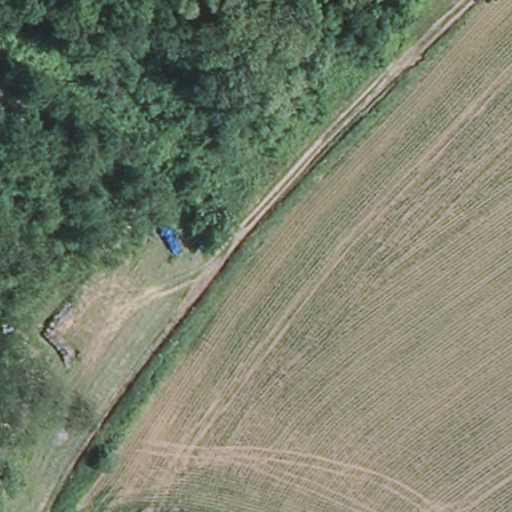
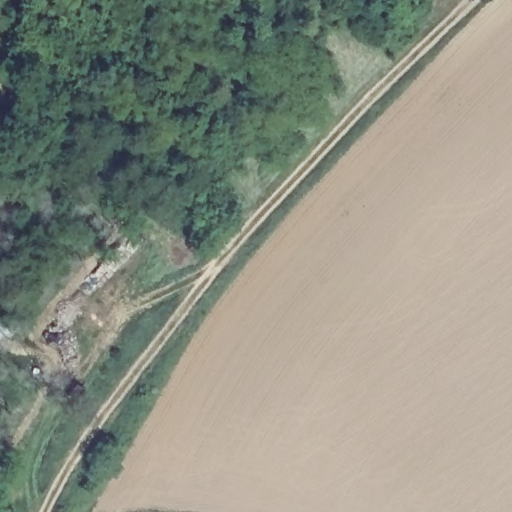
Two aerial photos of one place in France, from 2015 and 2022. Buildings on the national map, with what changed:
[]

